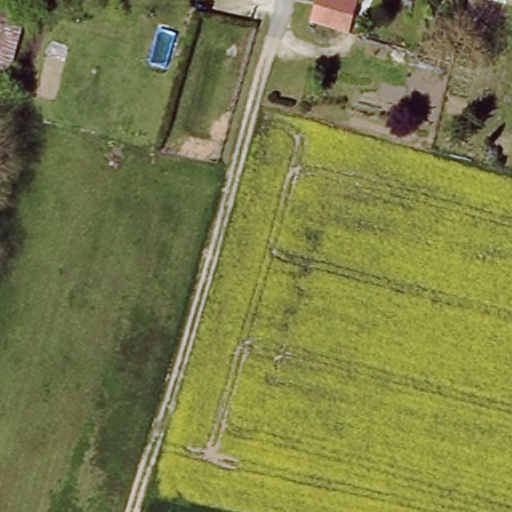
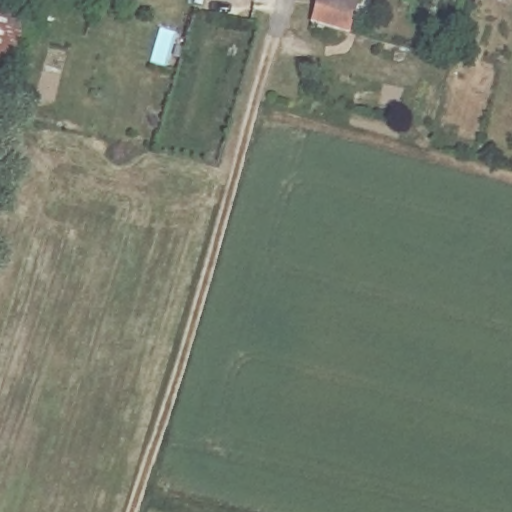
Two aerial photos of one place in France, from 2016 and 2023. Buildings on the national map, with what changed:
unchanged [(310,20),(314,0),(353,0),(347,25),(346,29),(310,20)]
unchanged [(0,110),(0,9),(26,16),(0,110)]

